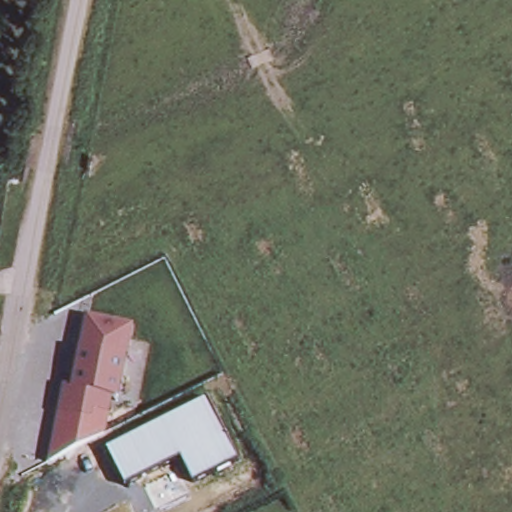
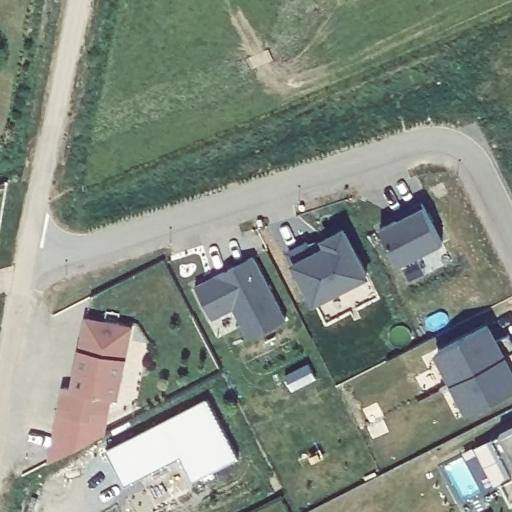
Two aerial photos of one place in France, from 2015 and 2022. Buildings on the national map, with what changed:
new [(381,227),(424,205),(443,242),(399,265),(381,227)]
new [(291,261),(286,251),(307,241),(313,250),(325,244),(322,238),(345,226),(370,276),(315,305),(291,261)]
new [(234,308),(212,318),(196,283),(255,257),(287,319),(250,338),(234,308)]
unchanged [(120,403),(112,402),(110,416),(98,415),(97,424),(55,416),(61,383),(72,386),(85,316),(135,325),(120,403)]
new [(488,331),(512,375),(512,393),(465,417),(435,360),(488,331)]
new [(306,367),(313,382),(290,393),(282,379),(306,367)]
unchanged [(210,396),(240,456),(195,479),(182,455),(127,483),(110,447),(210,396)]
new [(510,506),(499,485),(510,480),(490,441),(512,429),(512,504),(510,506)]

